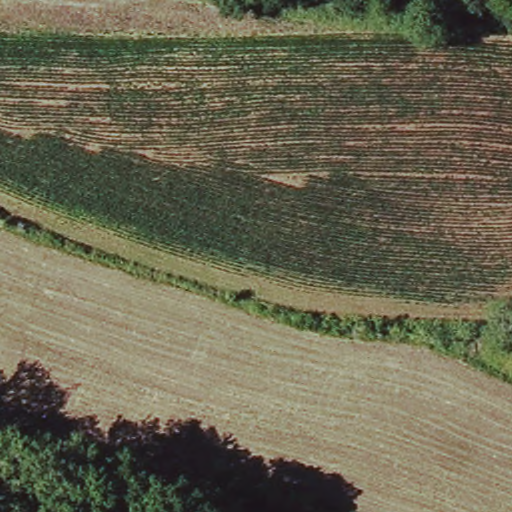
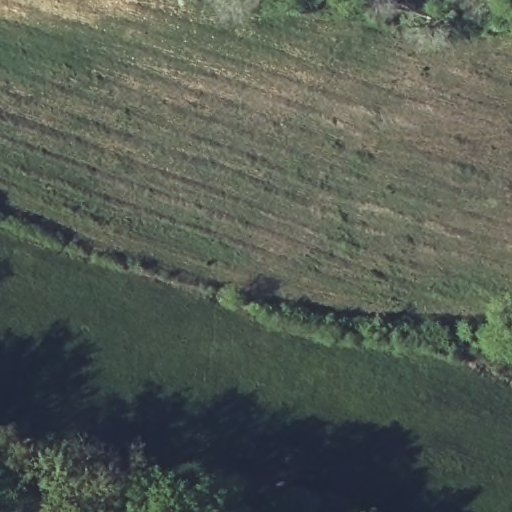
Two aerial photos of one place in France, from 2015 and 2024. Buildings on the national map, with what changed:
[]

